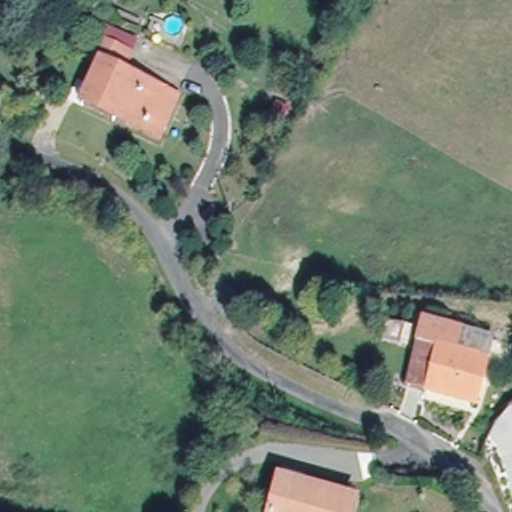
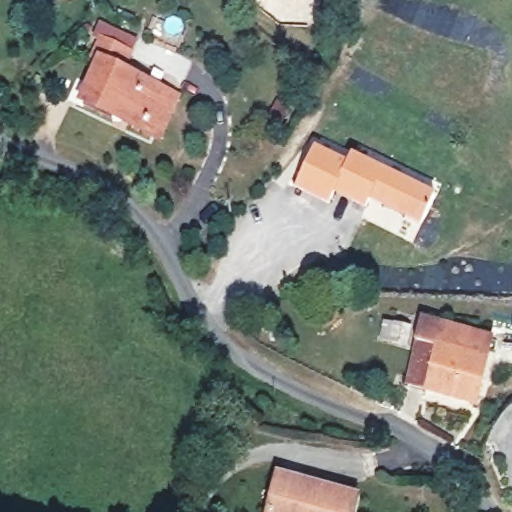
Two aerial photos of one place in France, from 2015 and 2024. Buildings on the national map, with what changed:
unchanged [(164,141),(151,135),(85,107),(101,69),(96,66),(103,49),(127,59),(120,77),(166,97),(180,103),(164,141)]
new [(318,145),(351,160),(356,152),(438,192),(425,220),(374,196),(370,204),(339,188),(334,200),(300,183),(318,145)]
unchanged [(476,393),(413,374),(426,331),(489,349),(476,393)]
unchanged [(356,493),(351,512),(276,512),(285,476),(356,493)]

